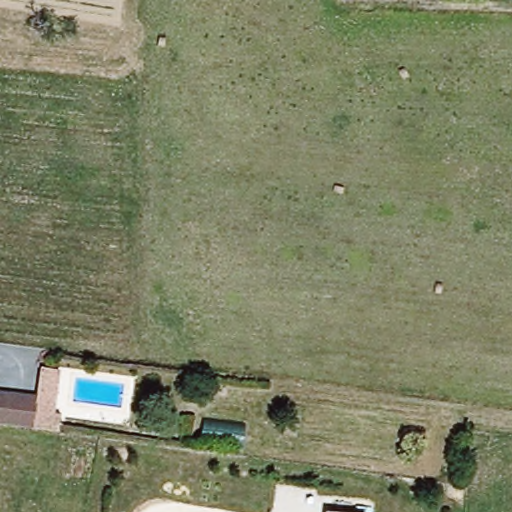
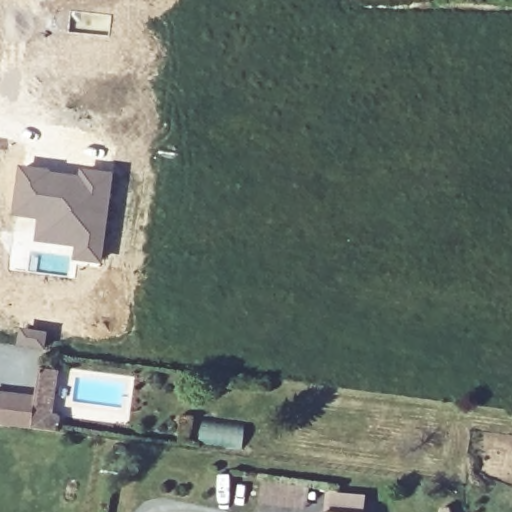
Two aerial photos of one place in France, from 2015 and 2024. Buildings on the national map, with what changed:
new [(19,164),(78,172),(79,165),(116,170),(103,262),(74,259),(75,246),(35,241),(38,219),(12,215),(19,164)]
new [(20,326),(50,330),(46,350),(17,346),(20,326)]
unchanged [(41,370),(60,370),(56,416),(61,416),(60,430),(35,427),(0,422),(0,394),(40,397),(41,370)]
new [(307,512),(260,502),(264,479),(273,477),(312,486),(307,512)]
unchanged [(325,510),(346,512),(325,512),(325,510)]

